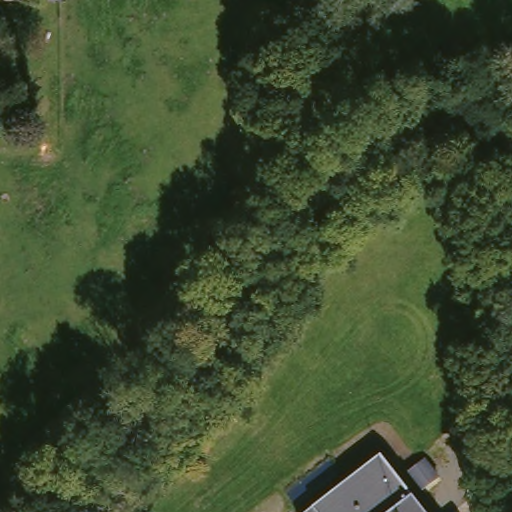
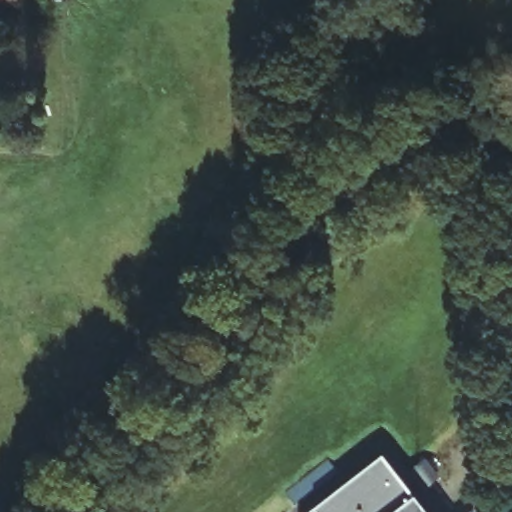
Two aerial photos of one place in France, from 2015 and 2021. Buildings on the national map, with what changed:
unchanged [(0,1),(0,0),(31,0),(31,1),(0,1)]
unchanged [(434,512),(300,512),(382,450),(434,512)]

